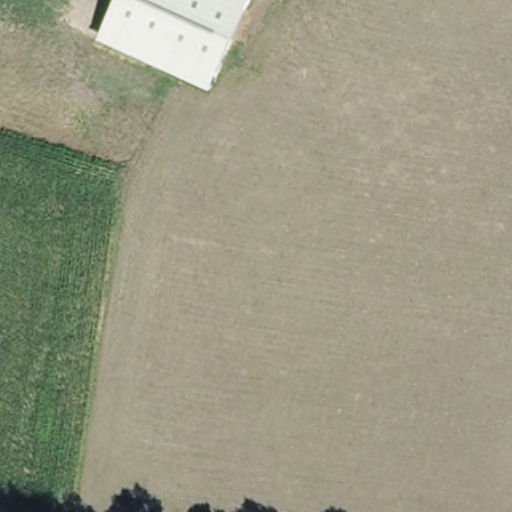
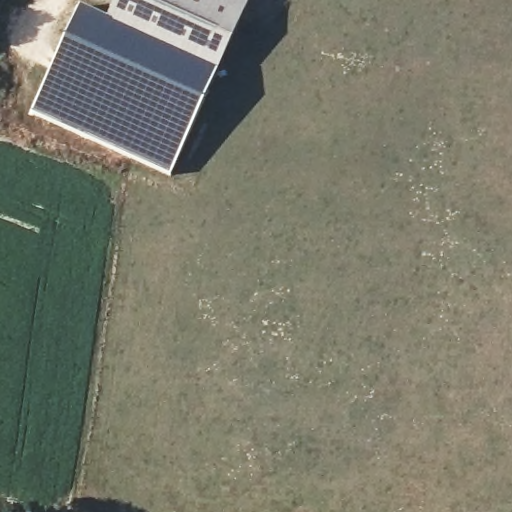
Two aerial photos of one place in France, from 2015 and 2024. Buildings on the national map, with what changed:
unchanged [(251,0),(210,90),(98,40),(116,0),(251,0)]
new [(98,40),(210,90),(170,174),(33,110),(66,40),(81,8),(107,20),(98,40)]

